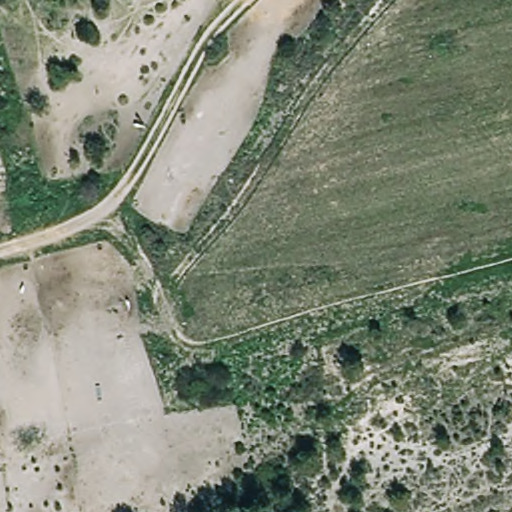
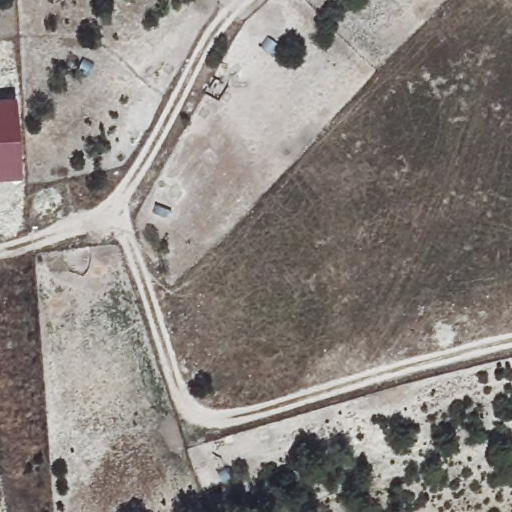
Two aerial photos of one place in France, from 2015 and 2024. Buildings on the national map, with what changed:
new [(0,178),(0,96),(14,95),(20,177),(0,178)]

